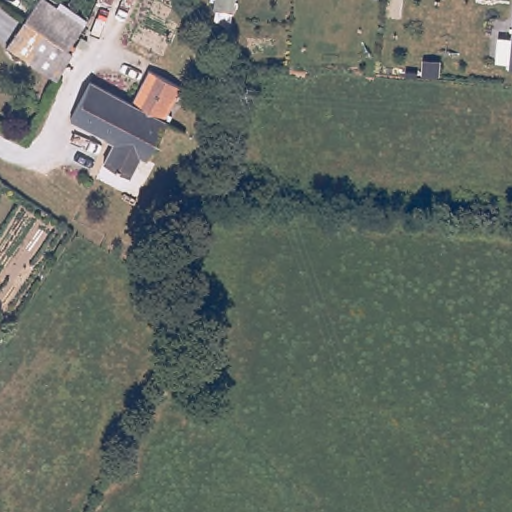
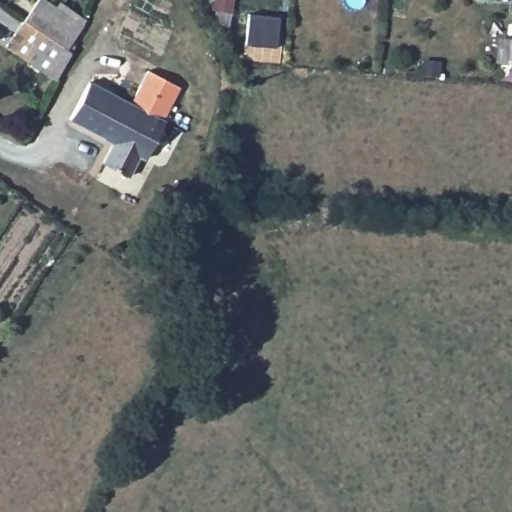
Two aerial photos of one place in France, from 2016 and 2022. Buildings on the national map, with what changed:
unchanged [(45,0),(85,28),(69,51),(26,20),(41,0),(45,0)]
unchanged [(69,51),(73,53),(59,80),(8,46),(26,20),(69,51)]
unchanged [(164,119),(165,121),(147,158),(141,156),(131,175),(105,161),(115,142),(71,118),(90,81),(132,102),(149,70),(180,87),(164,119)]

